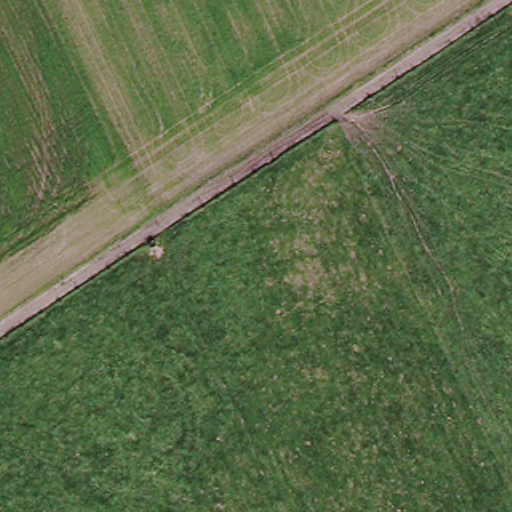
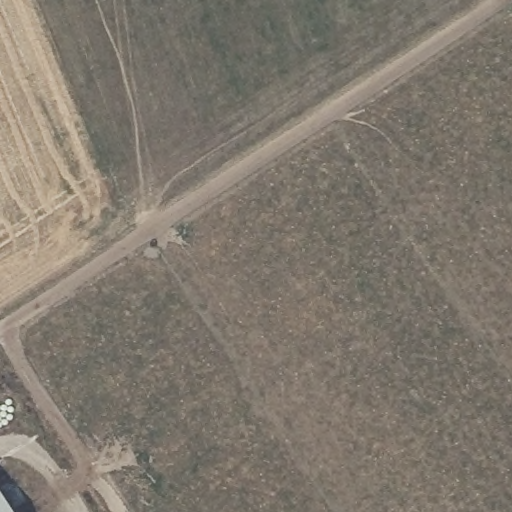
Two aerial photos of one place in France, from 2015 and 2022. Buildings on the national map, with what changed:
new [(0,512),(0,490),(14,512),(0,512)]

